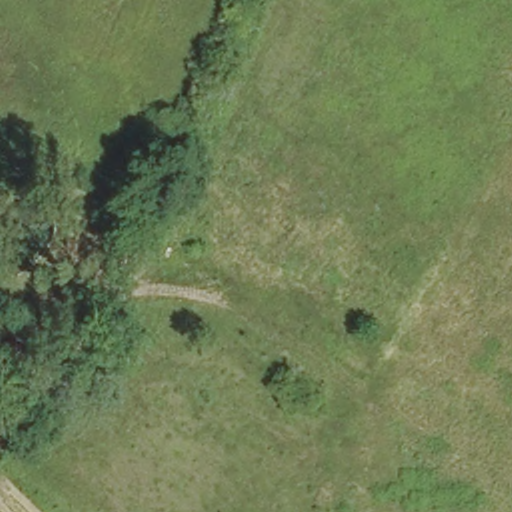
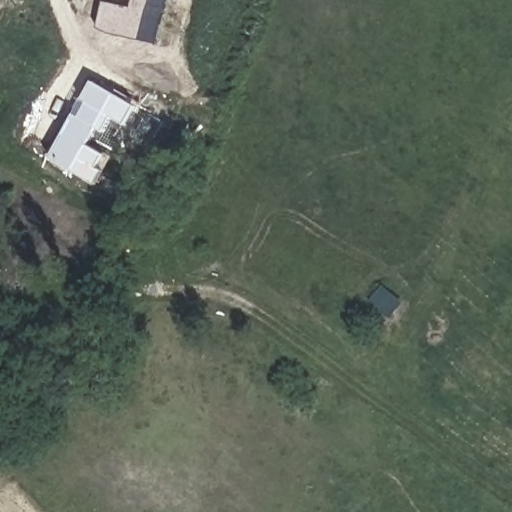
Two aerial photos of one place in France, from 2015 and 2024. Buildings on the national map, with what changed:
new [(158,44),(111,34),(98,27),(104,1),(132,7),(135,0),(133,0),(171,0),(158,44)]
new [(137,106),(127,125),(112,117),(105,132),(97,128),(89,145),(106,154),(112,158),(104,171),(96,184),(50,158),(92,81),(137,106)]

